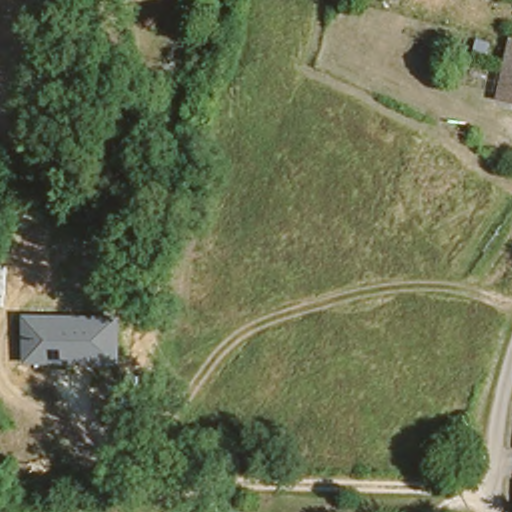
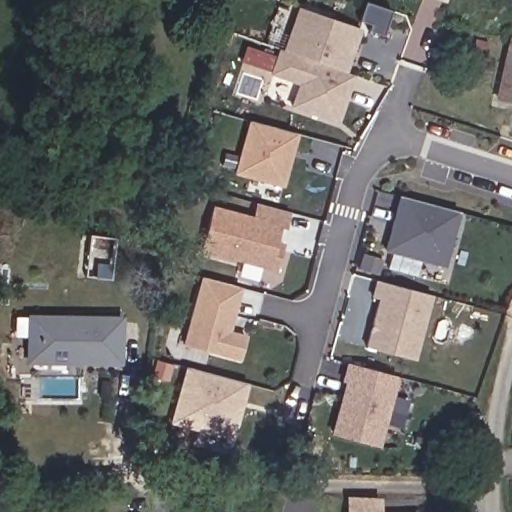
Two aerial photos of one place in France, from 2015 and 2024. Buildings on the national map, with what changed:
new [(349,72),(287,50),(302,7),(364,28),(349,72)]
unchanged [(512,38),(512,99),(496,95),(510,38),(512,38)]
new [(341,121),(296,106),(304,84),(275,73),(283,49),(358,75),(341,121)]
new [(288,186),(240,174),(254,121),(302,134),(288,186)]
new [(448,265),(390,250),(404,195),(462,210),(448,265)]
new [(278,248),(285,250),(280,270),(206,250),(217,207),(257,217),(261,203),(294,212),(290,227),(285,226),(278,248)]
new [(232,331),(248,335),(242,358),(187,343),(205,276),(244,286),(232,331)]
new [(418,358),(371,346),(384,297),(377,295),(381,279),(435,293),(418,358)]
new [(122,365),(25,364),(25,313),(123,315),(122,365)]
new [(359,356),(342,352),(346,337),(363,342),(359,356)]
new [(383,443),(338,431),(352,379),(348,378),(352,361),(401,375),(383,443)]
new [(237,435),(179,421),(194,366),(252,382),(237,435)]
new [(382,497),(381,512),(346,512),(347,495),(382,497)]

